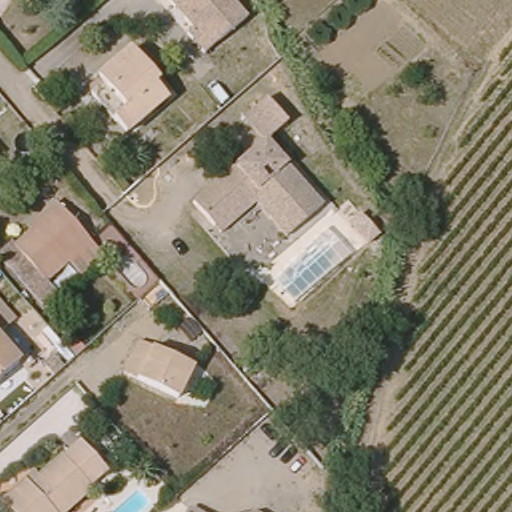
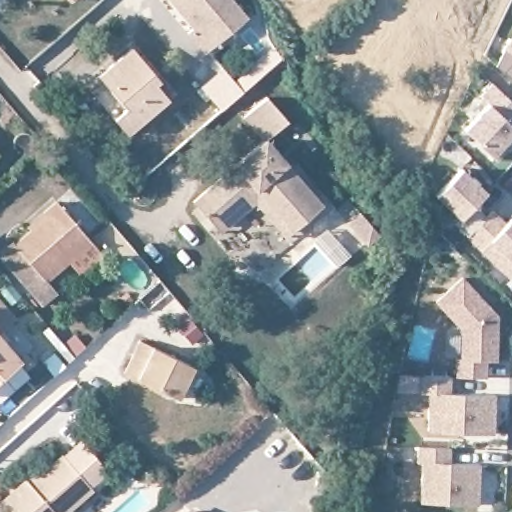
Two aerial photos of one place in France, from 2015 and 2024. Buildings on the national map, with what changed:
unchanged [(194,32),(198,26),(175,0),(238,0),(248,14),(208,50),(194,32)]
new [(504,49),(512,39),(512,80),(496,66),(504,49)]
unchanged [(107,83),(100,76),(136,45),(164,76),(160,81),(173,95),(134,130),(120,115),(97,91),(100,89),(103,86),(107,83)]
new [(465,130),(490,106),(482,96),(494,85),(512,102),(512,144),(496,159),(465,130)]
unchanged [(245,114),(267,95),(287,118),(265,138),(245,114)]
unchanged [(224,230),(218,222),(202,205),(197,200),(265,138),(282,159),(322,204),(293,230),(286,237),(254,204),(224,230)]
new [(455,224),(459,219),(435,195),(462,169),(487,194),(475,205),(483,213),(490,207),(506,227),(512,220),(512,275),(508,278),(481,251),(455,224)]
unchanged [(44,232),(40,227),(55,213),(65,204),(100,241),(57,282),(26,250),(44,232)]
new [(456,377),(457,359),(462,360),(462,330),(439,302),(462,279),(497,317),(496,361),(485,361),(484,379),(456,377)]
unchanged [(154,309),(143,298),(162,280),(172,291),(154,309)]
unchanged [(0,326),(0,293),(44,344),(28,358),(0,326)]
unchanged [(28,358),(0,384),(0,326),(28,358)]
unchanged [(70,347),(75,342),(83,334),(93,345),(83,353),(78,357),(70,347)]
unchanged [(186,397),(145,378),(132,372),(140,355),(147,341),(200,365),(186,397)]
unchanged [(47,365),(58,355),(68,367),(58,376),(47,365)]
new [(431,431),(432,393),(420,393),(420,376),(450,377),(449,394),(494,398),(493,435),(431,431)]
unchanged [(38,472),(43,477),(70,455),(68,457),(88,440),(112,469),(93,486),(95,492),(71,512),(19,512),(7,498),(30,478),(38,472)]
new [(421,502),(423,463),(417,462),(418,446),(449,448),(448,464),(479,465),(478,506),(421,502)]
unchanged [(195,512),(183,512),(186,506),(195,512)]

